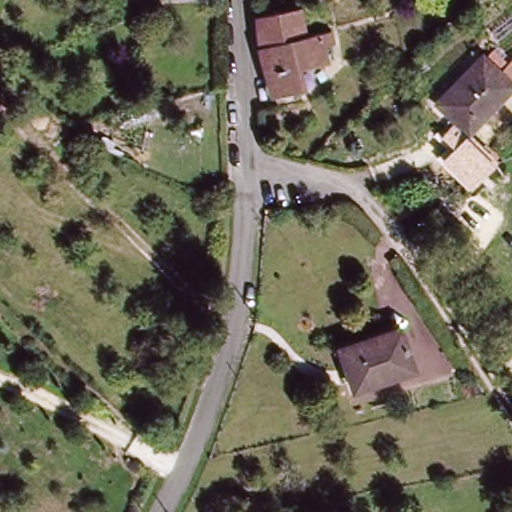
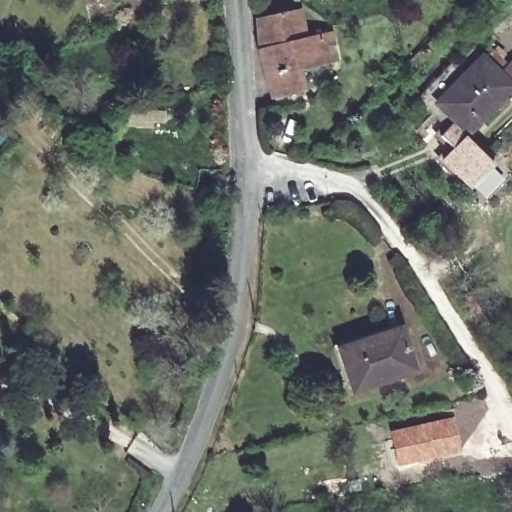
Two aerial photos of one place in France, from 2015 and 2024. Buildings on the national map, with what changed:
unchanged [(111,0),(116,0),(116,2),(116,8),(107,8),(107,0),(111,0)]
unchanged [(308,29),(326,24),(332,53),(302,60),(307,80),(280,87),(270,71),(259,12),(302,2),(308,29)]
unchanged [(512,82),(470,125),(440,95),(485,50),(512,77),(512,82)]
unchanged [(329,202),(268,208),(267,161),(326,175),(329,202)]
unchanged [(412,364),(357,382),(343,340),(398,321),(412,364)]
new [(455,413),(475,394),(491,407),(465,445),(462,452),(397,466),(388,430),(452,415),(455,413)]

